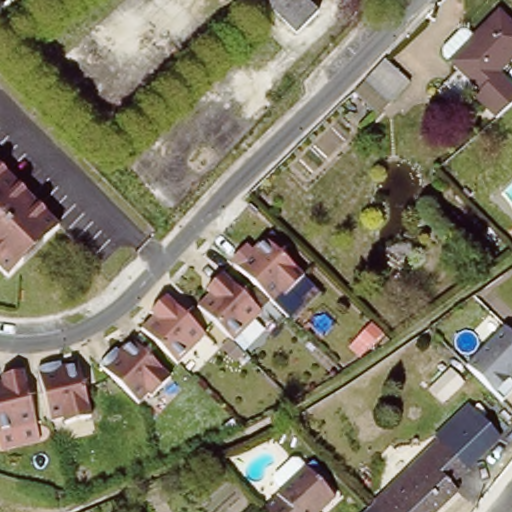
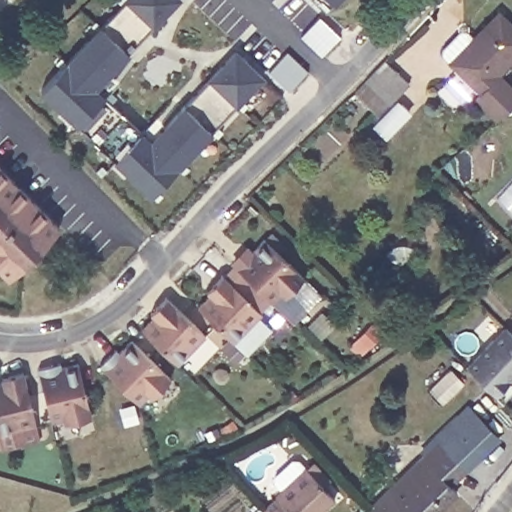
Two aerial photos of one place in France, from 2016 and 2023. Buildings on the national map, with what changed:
new [(211,130),(151,195),(114,159),(95,141),(76,124),(40,91),(100,26),(125,0),(179,0),(153,26),(128,53),(110,72),(118,80),(103,95),(120,113),(141,131),(157,114),(167,122),(184,105),(210,78),(235,47),(264,77),(235,105),(211,130)]
demolished [(297,32),(265,0),(305,0),(317,13),(297,32)]
new [(325,9),(315,0),(336,0),(334,2),(325,9)]
unchanged [(481,90),(446,55),(462,37),(469,43),(500,11),(512,23),(512,60),(500,72),(512,85),(512,105),(497,118),(476,97),(481,90)]
unchanged [(385,53),(410,79),(392,97),(379,110),(355,85),(367,73),(385,53)]
unchanged [(56,222),(9,271),(0,261),(0,165),(56,222)]
unchanged [(265,230),(307,273),(288,294),(280,287),(270,298),(237,264),(265,230)]
unchanged [(224,266),(268,308),(238,340),(195,299),(224,266)]
unchanged [(157,315),(147,309),(165,288),(210,331),(180,362),(145,329),(157,315)]
unchanged [(512,384),(512,390),(501,401),(465,366),(504,327),(512,336),(512,383),(512,384)]
unchanged [(132,333),(172,375),(141,406),(102,364),(132,333)]
unchanged [(39,368),(77,358),(90,412),(51,421),(39,368)]
unchanged [(3,377),(1,369),(25,362),(39,421),(0,433),(0,378),(3,377)]
unchanged [(467,408),(501,441),(457,486),(450,479),(467,463),(440,436),(467,408)]
unchanged [(375,501),(440,436),(467,463),(450,479),(457,486),(429,512),(386,512),(375,501)]
unchanged [(262,509),(278,495),(276,493),(306,466),(335,498),(321,512),(265,512),(262,509)]
unchanged [(375,501),(386,512),(364,512),(375,501)]

